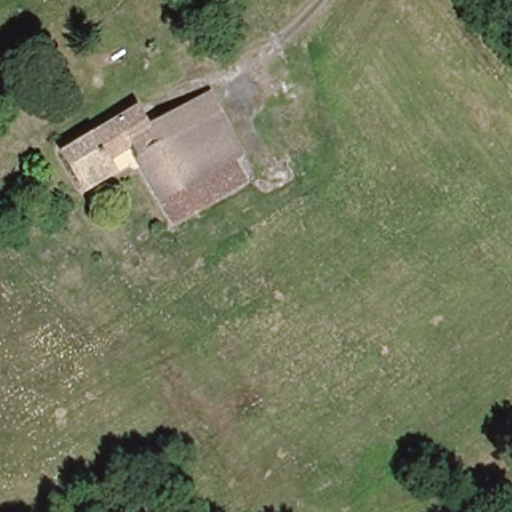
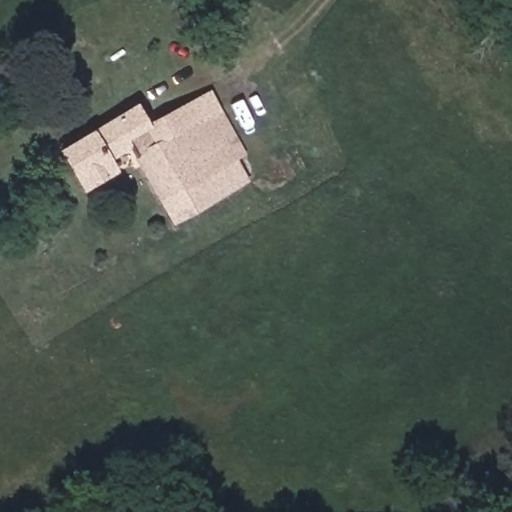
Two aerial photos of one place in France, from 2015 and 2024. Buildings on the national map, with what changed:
unchanged [(55,147),(130,103),(144,119),(208,89),(253,174),(167,226),(129,150),(112,158),(113,173),(79,193),(55,147)]

